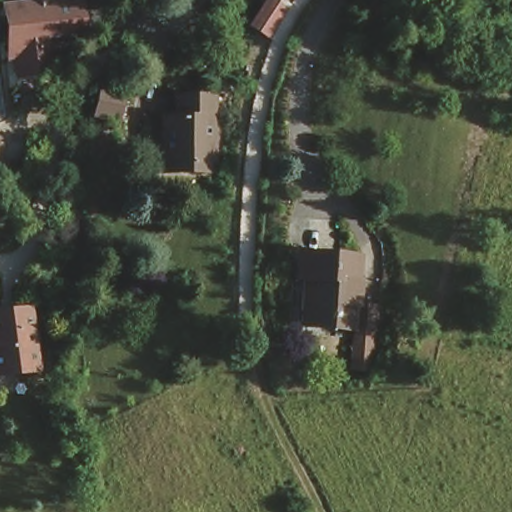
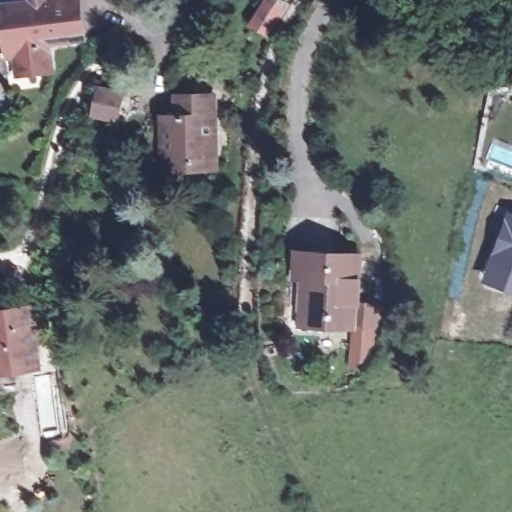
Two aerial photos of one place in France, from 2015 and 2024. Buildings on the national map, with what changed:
unchanged [(58,47),(62,72),(26,77),(22,54),(16,55),(13,46),(10,21),(8,12),(50,6),(49,1),(52,0),(83,0),(89,31),(91,42),(79,44),(58,47)]
unchanged [(291,13),(266,40),(250,25),(273,0),(292,0),(285,8),(291,13)]
unchanged [(213,164),(166,165),(166,114),(177,114),(178,97),(214,97),(213,164)]
new [(512,211),(512,293),(483,283),(509,210),(512,211)]
unchanged [(304,248),(366,251),(364,321),(378,322),(373,382),(349,380),(350,333),(298,332),(304,248)]
unchanged [(25,310),(35,309),(35,308),(40,342),(44,367),(0,375),(0,314),(25,310)]

